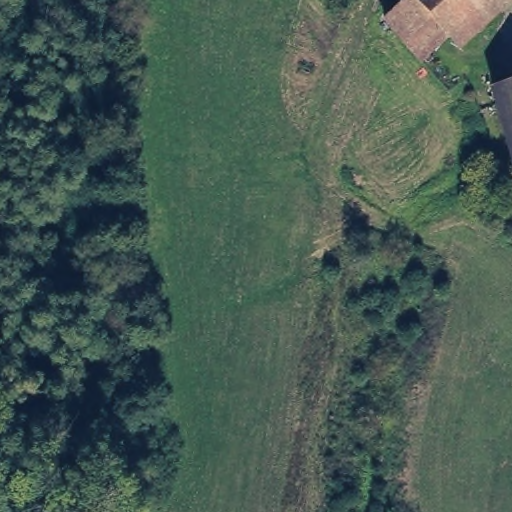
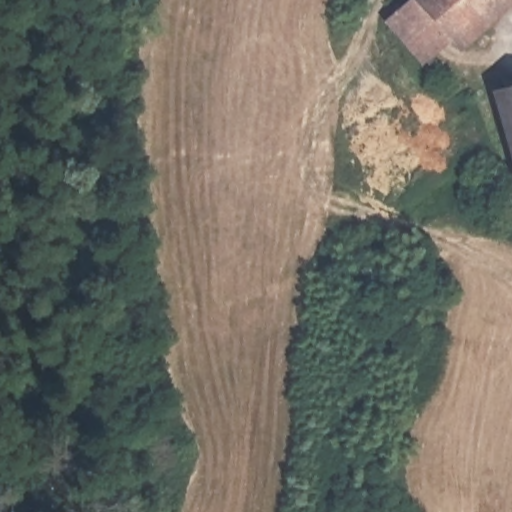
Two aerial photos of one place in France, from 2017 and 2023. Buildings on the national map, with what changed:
unchanged [(413,5),(418,0),(499,0),(450,46),(413,5)]
unchanged [(422,71),(386,30),(413,5),(450,46),(422,71)]
unchanged [(489,90),(512,84),(512,169),(489,90)]

